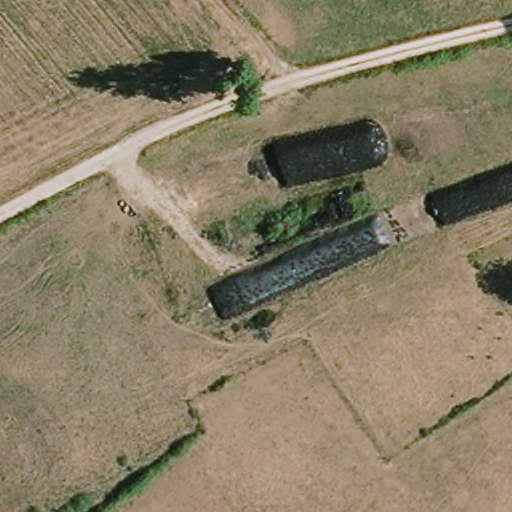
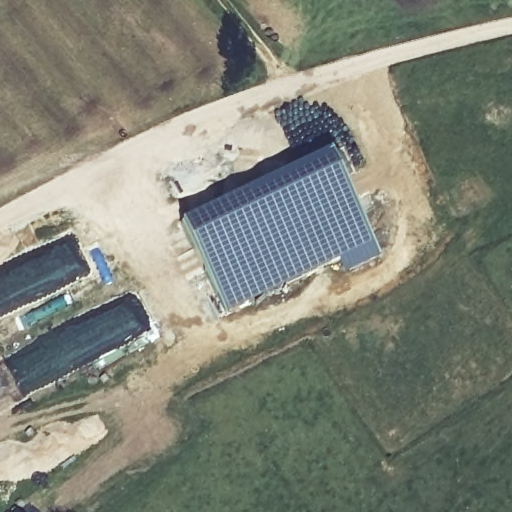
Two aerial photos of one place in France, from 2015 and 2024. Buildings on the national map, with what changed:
new [(334,151),(375,242),(226,312),(181,224),(334,151)]

